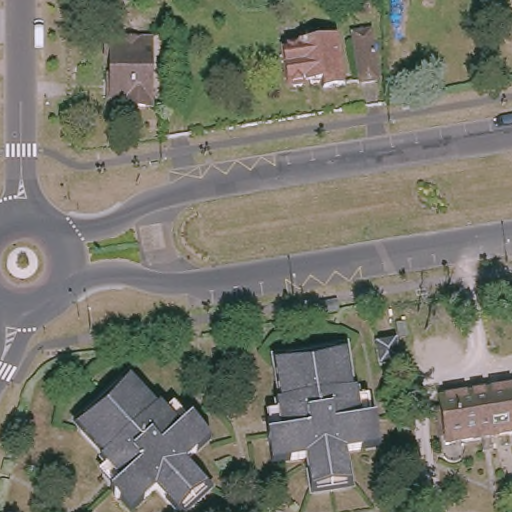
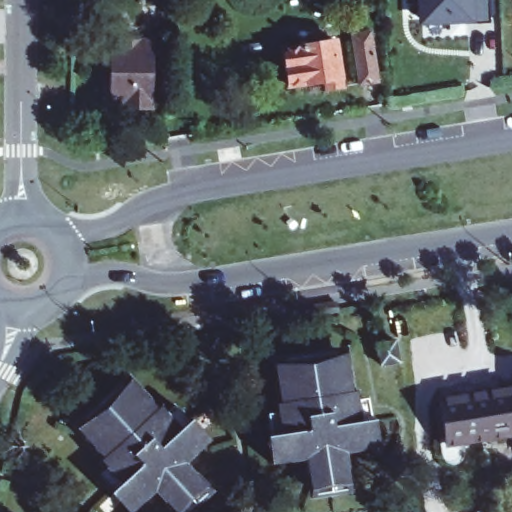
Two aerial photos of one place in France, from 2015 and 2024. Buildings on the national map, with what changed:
new [(416,0),(474,0),(476,25),(418,26),(416,0)]
unchanged [(371,31),(379,80),(361,82),(354,34),(371,31)]
unchanged [(326,83),(324,74),(321,75),(321,78),(315,80),(313,76),(301,78),(301,82),(296,83),(294,80),(289,80),(289,76),(286,74),(284,69),(288,67),(287,60),(283,57),(282,50),(285,49),(284,42),(288,42),(287,39),(294,38),(295,41),(306,40),(305,36),(315,35),(316,38),(336,35),(343,71),(344,79),(326,83)]
unchanged [(113,78),(113,58),(108,58),(108,40),(151,40),(151,107),(127,107),(127,100),(108,100),(108,78),(113,78)]
unchanged [(399,345),(379,348),(376,327),(396,323),(399,345)]
unchanged [(296,363),(294,353),(318,349),(319,360),(344,356),(349,389),(353,388),(358,417),(371,415),(376,442),(344,447),(349,472),(309,479),(305,454),(270,460),(266,432),(279,430),(274,401),(279,400),(274,368),(296,363)]
unchanged [(462,435),(463,442),(463,443),(463,444),(463,445),(462,446),(462,447),(462,448),(461,449),(461,450),(460,451),(459,451),(459,452),(458,452),(457,453),(456,453),(454,454),(453,454),(451,454),(450,454),(449,453),(448,453),(447,452),(446,451),(445,451),(444,450),(444,449),(443,448),(443,447),(441,432),(447,431),(446,428),(442,428),(438,404),(442,404),(441,393),(509,382),(512,378),(512,427),(462,435)]
unchanged [(94,409),(111,393),(118,400),(136,384),(158,408),(161,405),(181,427),(191,417),(210,438),(185,461),(203,481),(174,509),(156,488),(130,512),(129,512),(110,492),(121,481),(102,460),(104,457),(83,432),(100,416),(94,409)]

